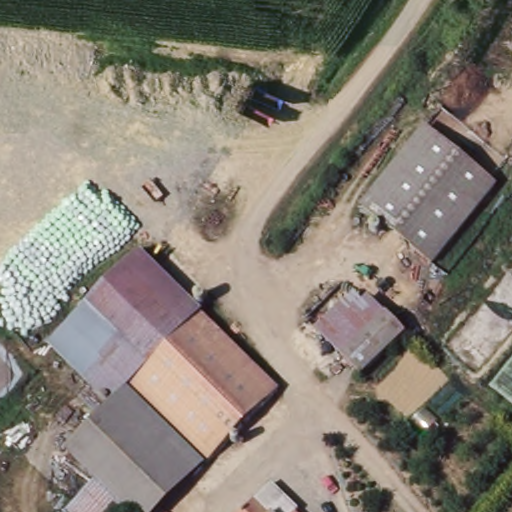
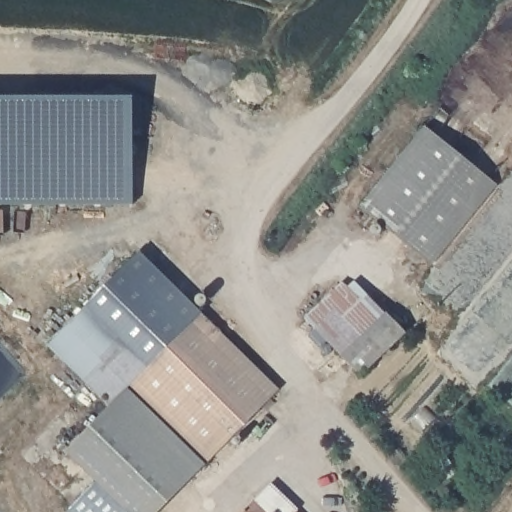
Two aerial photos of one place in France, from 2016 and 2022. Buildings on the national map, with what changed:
new [(0,97),(133,97),(134,204),(0,204),(0,97)]
unchanged [(427,130),(498,187),(435,265),(365,205),(427,130)]
unchanged [(187,308),(120,378),(101,397),(88,376),(59,341),(73,325),(145,245),(178,274),(164,285),(187,308)]
unchanged [(353,383),(338,361),(339,359),(313,332),(354,295),(361,302),(368,295),(407,335),(353,383)]
unchanged [(190,305),(270,380),(198,455),(120,378),(187,308),(190,305)]
unchanged [(186,466),(184,465),(139,512),(126,512),(116,502),(105,512),(61,512),(51,502),(83,468),(58,441),(84,416),(101,397),(120,378),(198,455),(186,466)]
unchanged [(270,489),(290,508),(286,512),(248,512),(270,489)]

